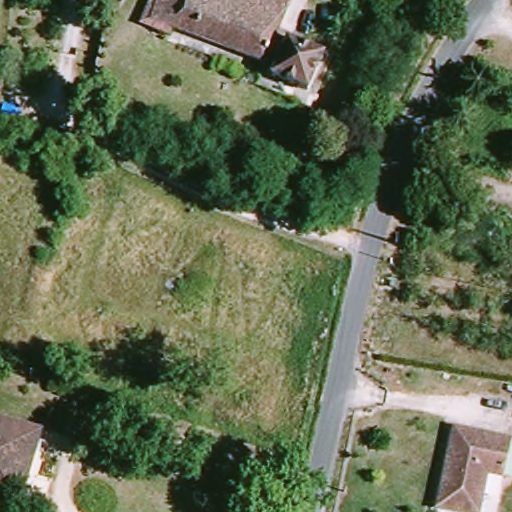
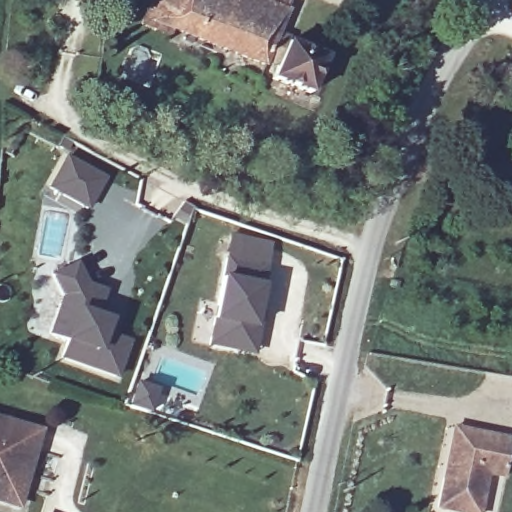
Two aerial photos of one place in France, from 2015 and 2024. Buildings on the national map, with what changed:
unchanged [(275,74),(151,24),(163,0),(291,0),(294,1),(289,13),(275,45),(293,53),(278,91),(268,88),(275,74)]
unchanged [(293,53),(323,66),(305,102),(278,91),(293,53)]
new [(88,209),(47,188),(66,154),(104,175),(88,209)]
new [(256,354),(242,350),(213,345),(228,258),(267,265),(259,311),(264,312),(256,354)]
new [(89,283),(109,288),(101,317),(110,321),(108,330),(131,338),(116,380),(59,359),(64,340),(46,334),(60,296),(49,275),(76,261),(89,283)]
unchanged [(11,504),(0,501),(0,424),(34,434),(11,504)]
unchanged [(482,471),(473,512),(464,512),(433,507),(447,437),(449,426),(487,433),(505,436),(499,473),(482,471)]

